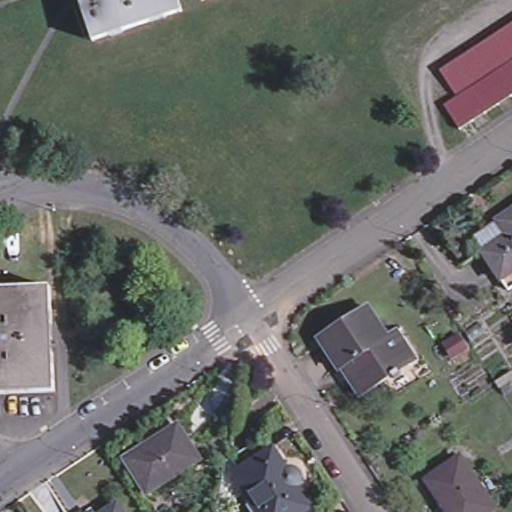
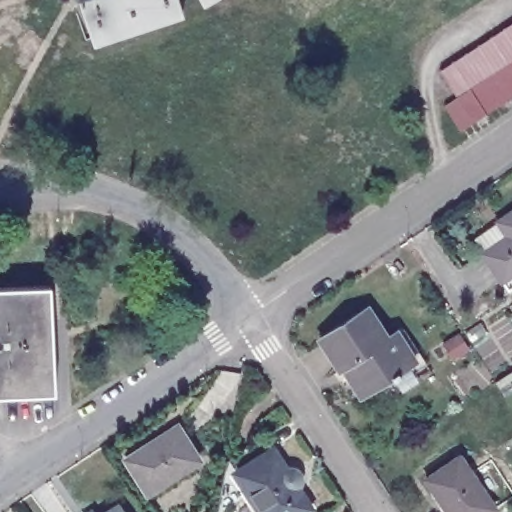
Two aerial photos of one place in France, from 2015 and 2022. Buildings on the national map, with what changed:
unchanged [(182,11),(93,38),(81,0),(178,0),(182,11)]
unchanged [(207,6),(203,0),(217,0),(207,6)]
unchanged [(512,61),(457,97),(439,70),(512,20),(512,61)]
unchanged [(457,97),(512,61),(512,97),(459,132),(442,107),(457,97)]
unchanged [(512,215),(512,276),(503,282),(485,254),(509,237),(500,222),(512,215)]
unchanged [(50,286),(55,391),(0,393),(0,288),(50,286)]
unchanged [(432,373),(394,397),(385,382),(362,396),(345,368),(341,370),(322,337),(369,307),(388,338),(397,332),(417,362),(422,358),(432,373)]
unchanged [(180,425),(201,459),(149,492),(128,457),(180,425)]
unchanged [(291,464),(294,466),(297,469),(298,472),(298,475),(297,477),(297,480),(295,482),(308,502),(293,512),(261,512),(232,467),(270,443),(283,465),(287,463),(291,464)]
unchanged [(495,505),(484,512),(451,512),(427,477),(460,455),(495,505)]
unchanged [(120,512),(101,512),(114,503),(120,512)]

